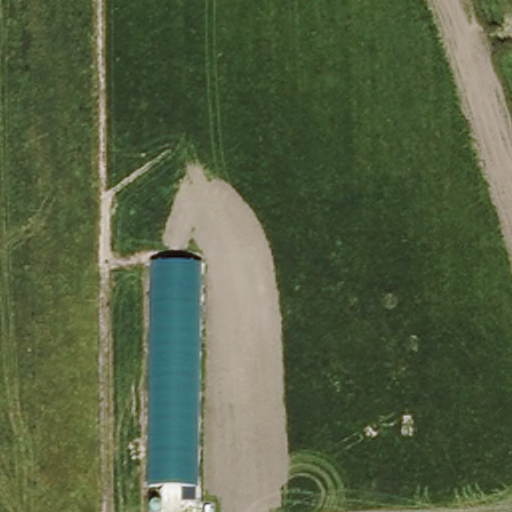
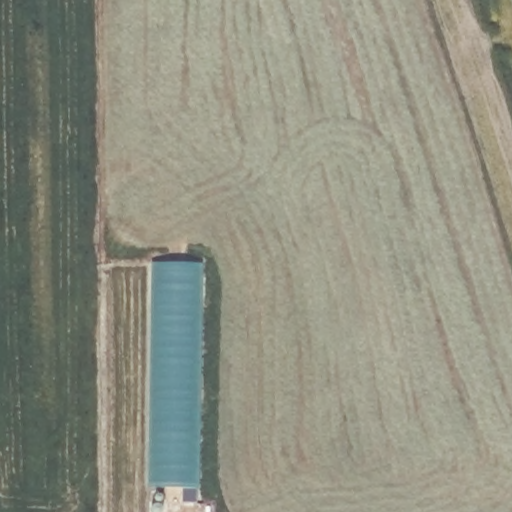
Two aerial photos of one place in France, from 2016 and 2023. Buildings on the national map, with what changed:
unchanged [(198,488),(147,487),(148,261),(198,261),(198,488)]

